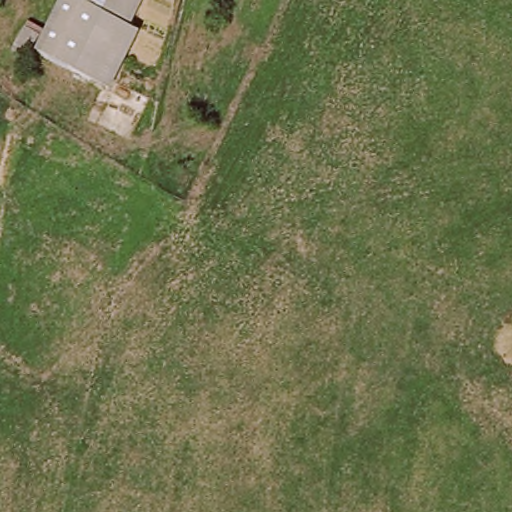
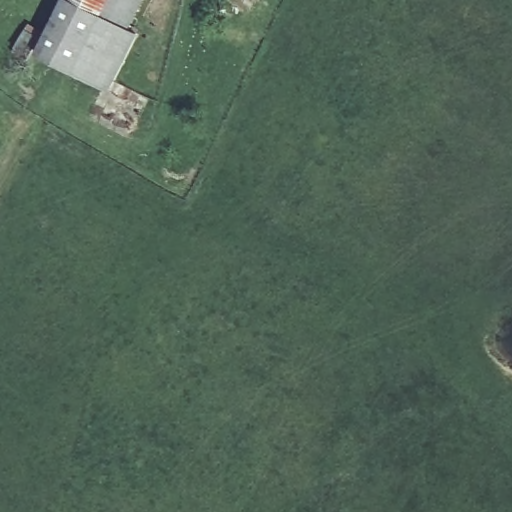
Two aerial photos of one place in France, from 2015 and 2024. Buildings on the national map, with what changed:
unchanged [(144,0),(107,71),(47,37),(67,0),(144,0)]
unchanged [(36,59),(47,37),(107,71),(97,89),(68,74),(36,59)]

